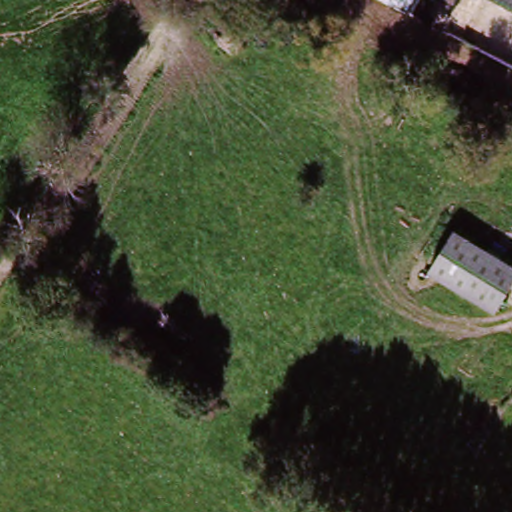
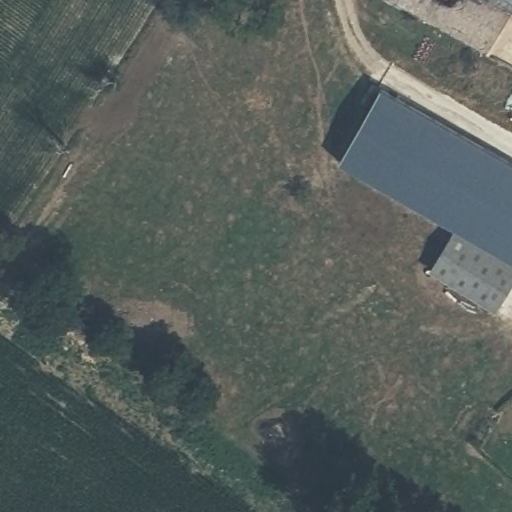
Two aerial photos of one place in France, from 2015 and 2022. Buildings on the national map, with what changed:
unchanged [(488,0),(512,0),(512,12),(488,0)]
new [(512,162),(512,260),(339,162),(381,88),(512,162)]
unchanged [(430,270),(454,232),(512,269),(512,281),(493,310),(430,270)]

